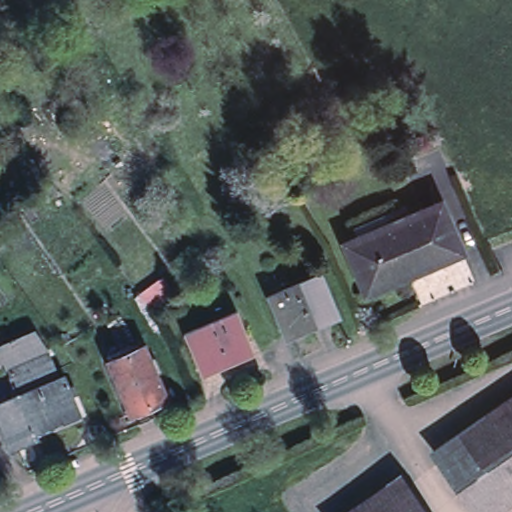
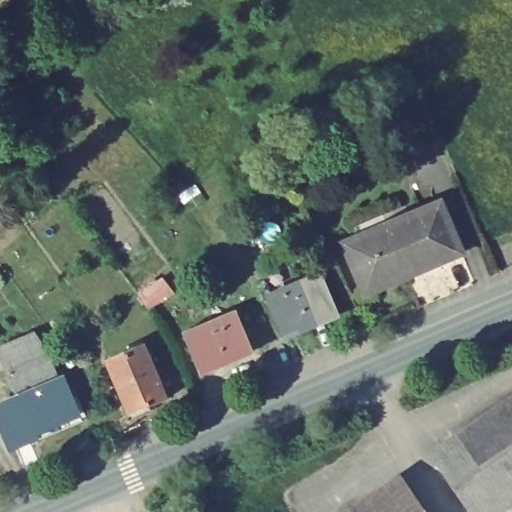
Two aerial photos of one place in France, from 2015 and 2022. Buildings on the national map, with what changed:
unchanged [(467,254),(371,296),(350,248),(362,243),(357,232),(386,219),(391,230),(444,206),(467,254)]
unchanged [(287,337),(284,329),(270,298),(321,277),(335,308),(338,316),(287,337)]
unchanged [(176,301),(150,320),(140,306),(165,287),(176,301)]
unchanged [(200,379),(196,370),(183,340),(235,318),(248,348),(252,357),(200,379)]
unchanged [(0,350),(34,335),(41,346),(48,356),(58,380),(16,397),(0,359),(0,350)]
unchanged [(130,414),(108,360),(143,346),(165,400),(130,414)]
unchanged [(58,380),(62,378),(75,413),(30,431),(16,397),(58,380)]
unchanged [(429,452),(470,424),(512,394),(512,512),(474,512),(429,452)]
unchanged [(33,439),(10,448),(0,428),(0,403),(16,397),(30,431),(33,439)]
unchanged [(406,492),(420,512),(377,512),(406,492)]

